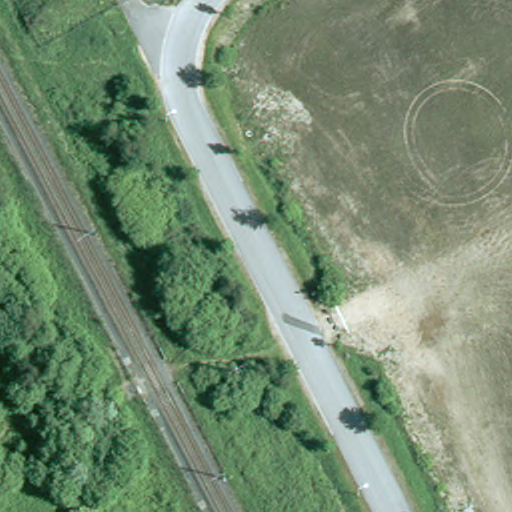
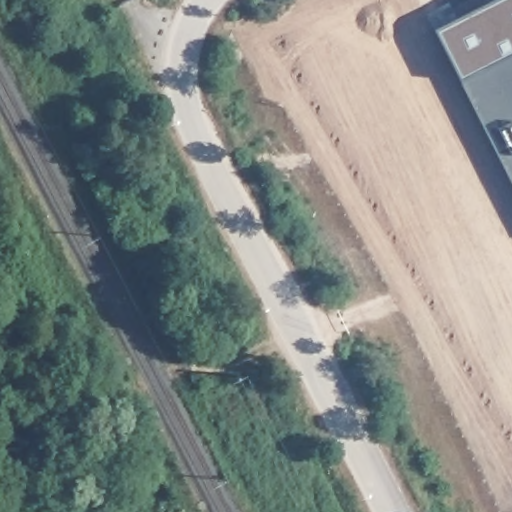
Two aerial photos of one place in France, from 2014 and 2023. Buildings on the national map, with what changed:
new [(435,29),(493,0),(512,0),(512,186),(435,29)]

